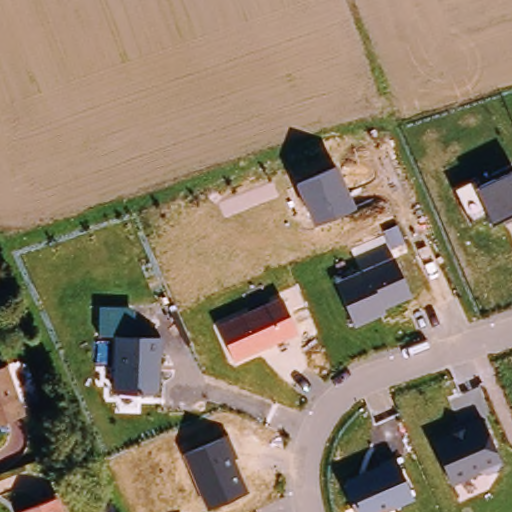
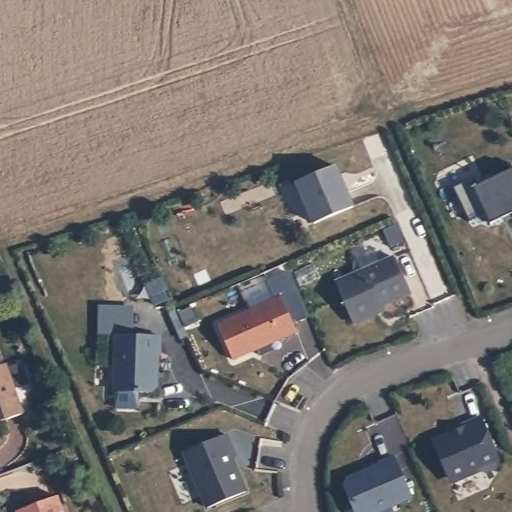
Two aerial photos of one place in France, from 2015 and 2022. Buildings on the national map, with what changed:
unchanged [(337,165),(354,208),(313,224),(294,181),(337,165)]
unchanged [(511,214),(489,224),(485,214),(470,222),(453,189),(470,181),(473,187),(512,170),(512,219),(511,214)]
unchanged [(394,256),(410,297),(382,307),(384,313),(353,326),(335,280),(394,256)]
unchanged [(282,295),(297,335),(234,360),(218,323),(282,295)]
unchanged [(115,337),(99,336),(99,303),(137,306),(136,335),(162,338),(162,351),(160,352),(157,393),(112,390),(115,337)]
unchanged [(24,425),(0,435),(0,367),(1,367),(24,425)]
unchanged [(452,440),(449,427),(482,415),(500,463),(499,468),(484,475),(479,472),(450,482),(435,446),(452,440)]
unchanged [(229,435),(237,456),(234,459),(247,490),(207,508),(185,452),(229,435)]
unchanged [(377,512),(355,512),(342,482),(395,459),(412,497),(377,512)]
unchanged [(64,512),(33,512),(60,501),(64,512)]

